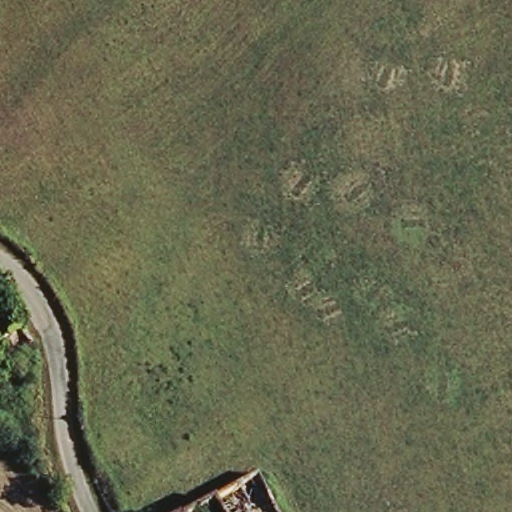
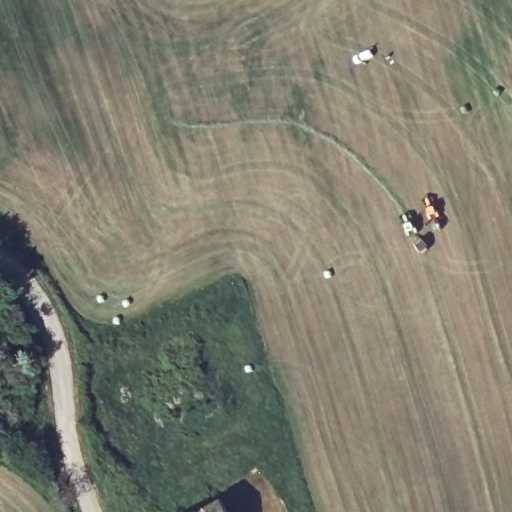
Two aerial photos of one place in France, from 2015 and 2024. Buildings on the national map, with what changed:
unchanged [(0,361),(0,303),(42,360),(22,374),(13,362),(5,367),(0,361)]
unchanged [(217,502),(260,477),(278,512),(199,512),(217,502)]

